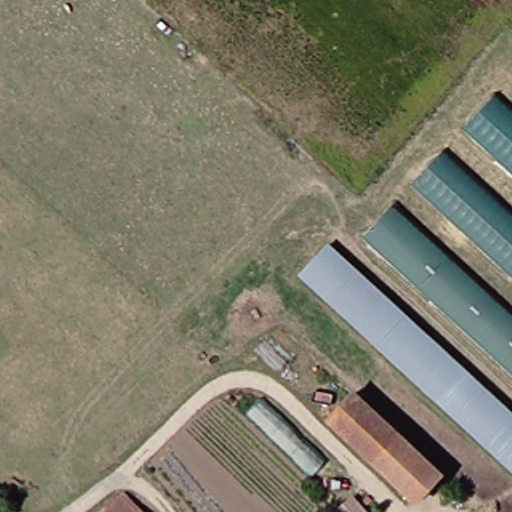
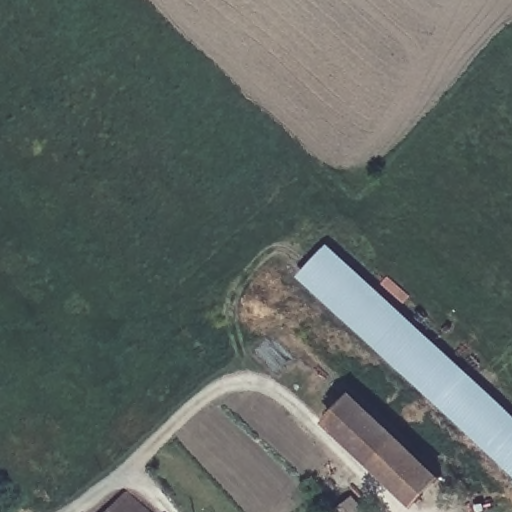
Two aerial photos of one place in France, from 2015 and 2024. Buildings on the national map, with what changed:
demolished [(466,125),(496,89),(512,104),(512,167),(466,125)]
demolished [(512,211),(512,268),(415,179),(444,149),(512,211)]
demolished [(398,204),(512,307),(512,372),(368,239),(398,204)]
unchanged [(332,245),(512,407),(512,469),(301,276),(332,245)]
unchanged [(334,418),(360,392),(413,441),(385,468),(334,418)]
unchanged [(420,498),(385,468),(413,441),(445,469),(420,498)]
unchanged [(364,505),(356,512),(341,512),(331,501),(349,486),(364,505)]
unchanged [(147,512),(110,512),(128,490),(147,512)]

